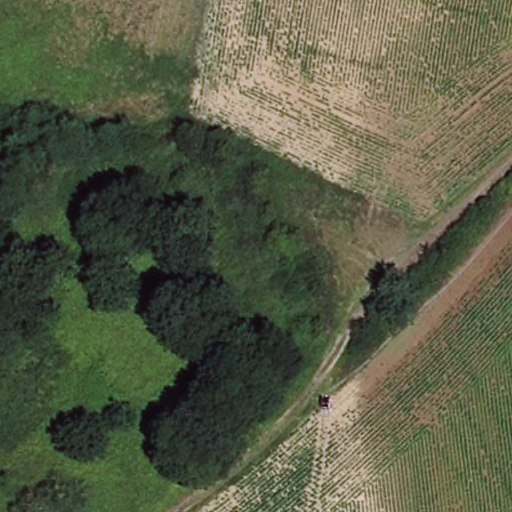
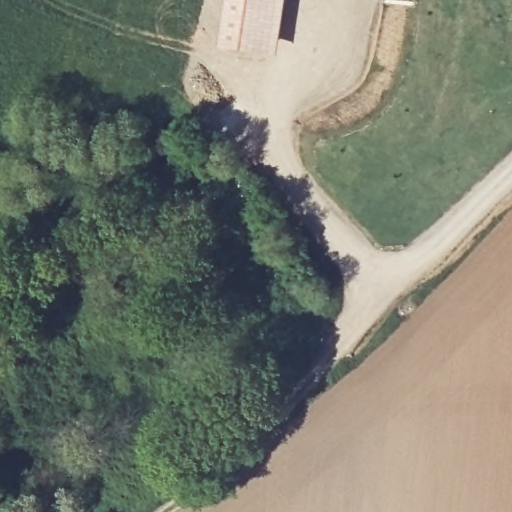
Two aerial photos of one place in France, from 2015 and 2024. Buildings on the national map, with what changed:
new [(228,0),(287,0),(278,56),(221,47),(228,0)]

